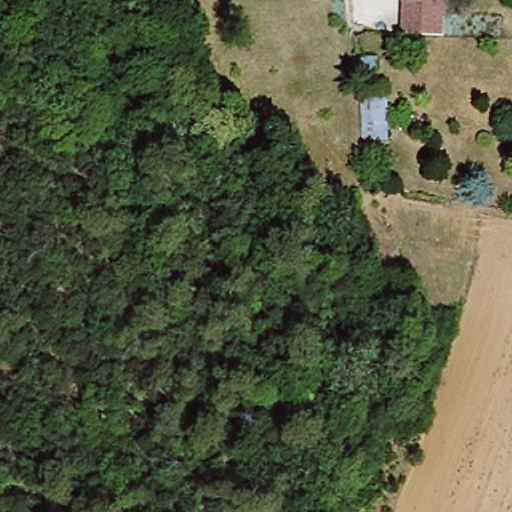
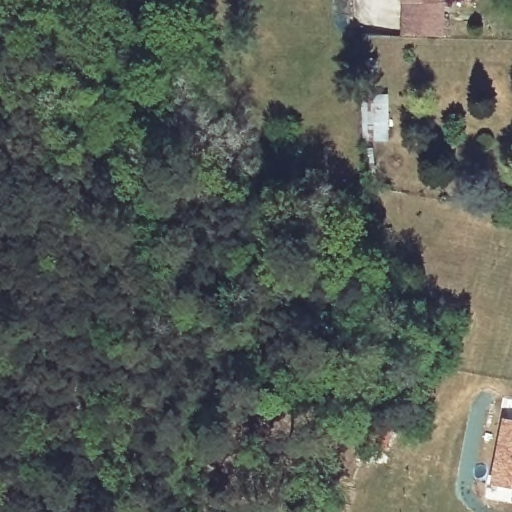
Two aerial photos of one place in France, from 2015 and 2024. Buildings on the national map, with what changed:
unchanged [(439,38),(397,37),(397,4),(395,0),(437,0),(439,5),(439,38)]
new [(506,422),(512,423),(512,488),(496,485),(506,422)]

